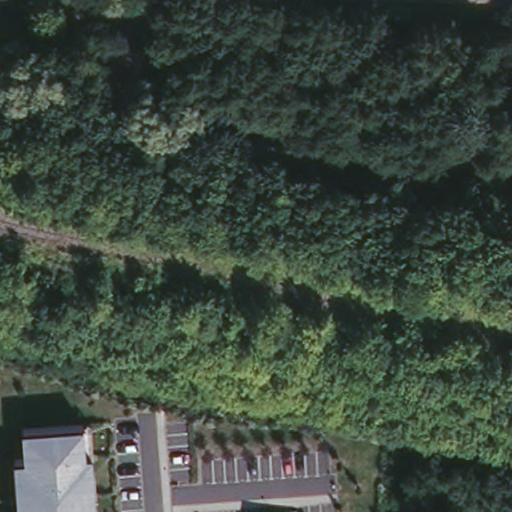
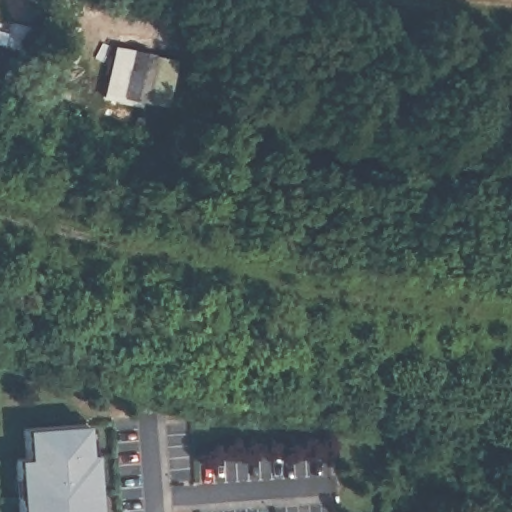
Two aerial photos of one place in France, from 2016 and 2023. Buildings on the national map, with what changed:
demolished [(3,2),(3,0),(13,0),(13,2),(3,2)]
new [(7,48),(0,46),(0,31),(9,32),(7,48)]
new [(114,47),(178,59),(170,108),(146,105),(144,109),(104,100),(114,47)]
unchanged [(87,452),(94,452),(98,512),(18,512),(13,459),(24,457),(23,430),(84,423),(87,452)]

